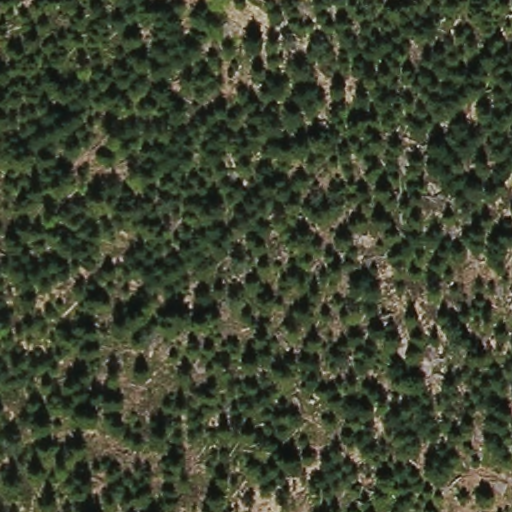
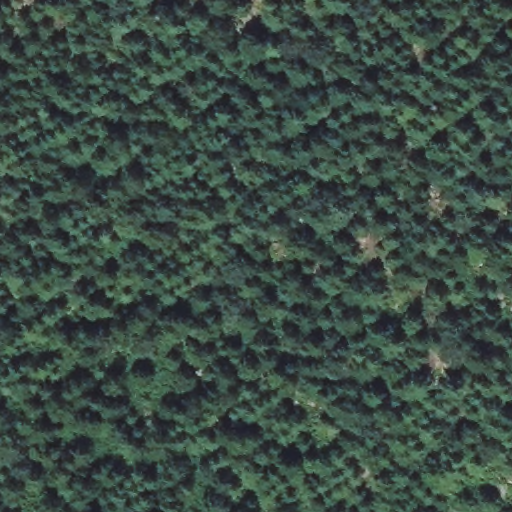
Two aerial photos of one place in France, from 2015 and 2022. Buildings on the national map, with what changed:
[]

